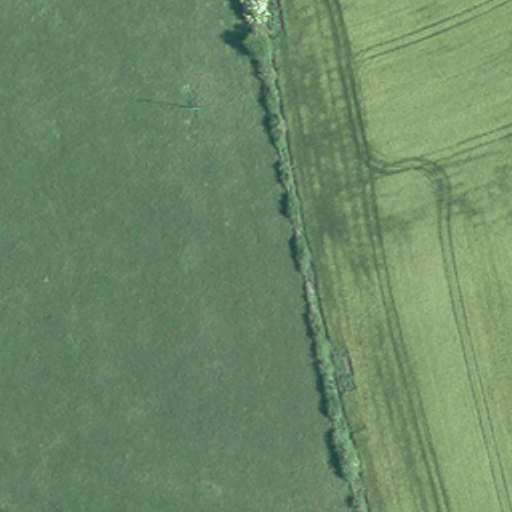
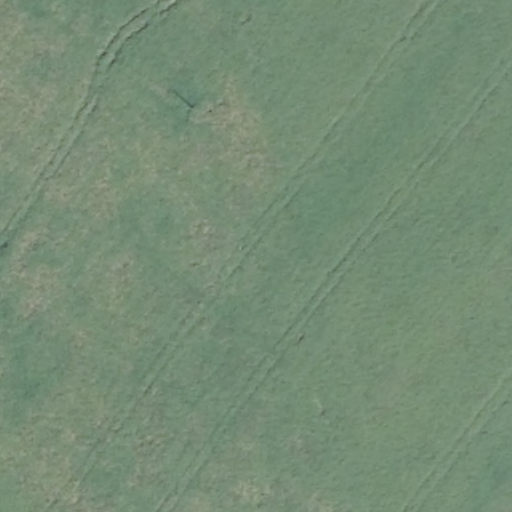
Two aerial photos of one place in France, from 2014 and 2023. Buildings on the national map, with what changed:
[]

